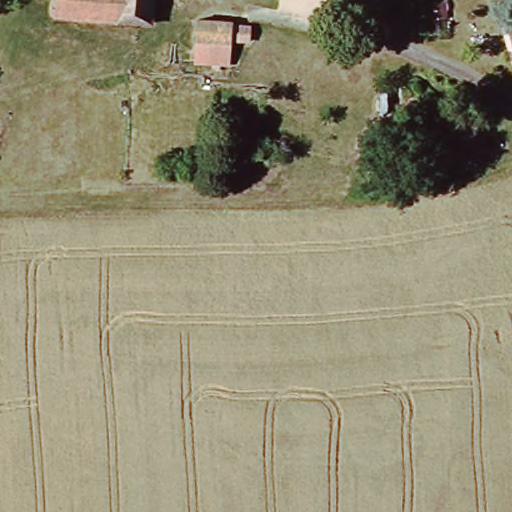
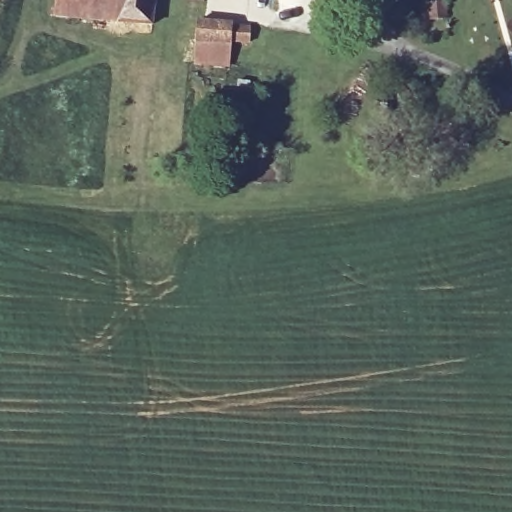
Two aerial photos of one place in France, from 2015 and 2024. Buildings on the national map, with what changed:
unchanged [(62,0),(115,0),(112,22),(60,17),(62,0)]
unchanged [(152,26),(112,22),(115,0),(155,0),(152,26)]
unchanged [(192,66),(195,24),(230,25),(232,29),(250,29),(250,45),(231,46),(231,69),(192,66)]

